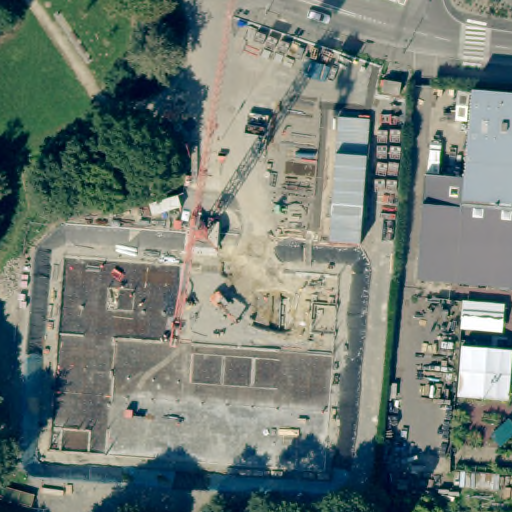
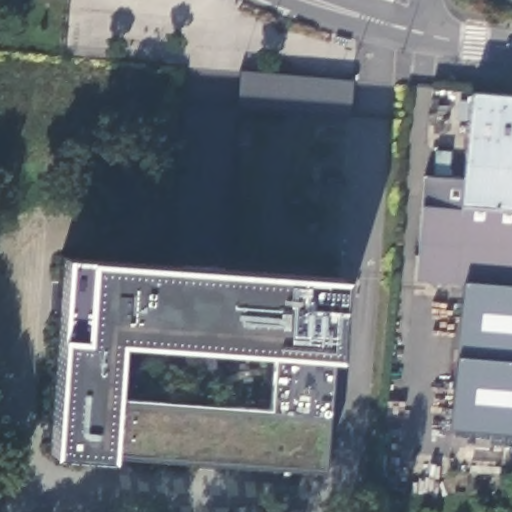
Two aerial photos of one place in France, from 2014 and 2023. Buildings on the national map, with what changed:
new [(352,81),(350,114),(240,106),(241,72),(352,81)]
demolished [(399,102),(382,101),(383,90),(400,91),(399,102)]
unchanged [(428,181),(465,184),(471,95),(512,98),(512,291),(421,282),(428,181)]
new [(332,356),(326,413),(322,470),(106,455),(48,452),(55,335),(61,255),(85,256),(339,276),(332,356)]
new [(512,436),(451,431),(456,357),(464,286),(512,291),(512,436)]
demolished [(461,345),(418,342),(421,312),(461,315),(461,345)]

